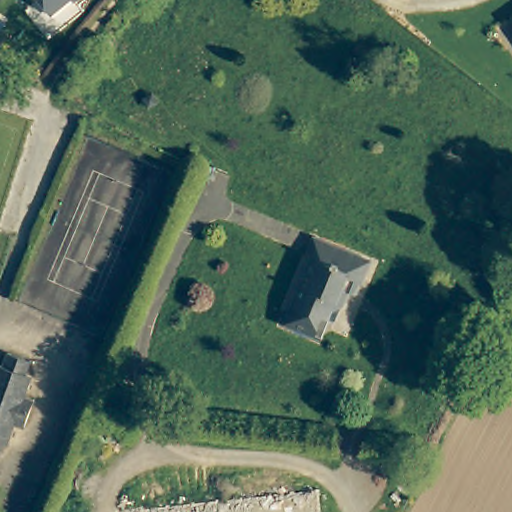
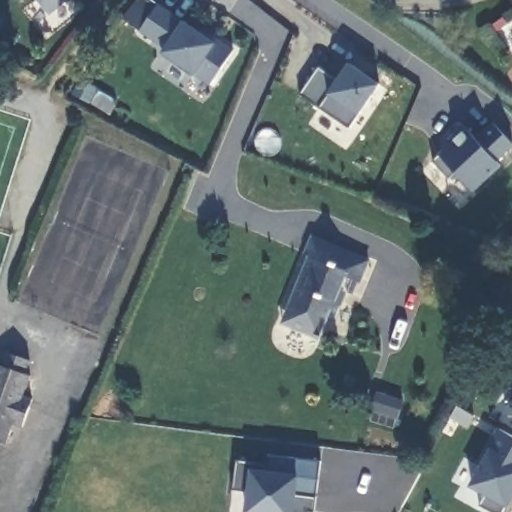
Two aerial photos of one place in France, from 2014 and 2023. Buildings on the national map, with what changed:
unchanged [(66,0),(56,8),(50,0),(66,0)]
new [(183,19),(208,38),(211,34),(236,49),(213,84),(195,74),(163,53),(166,48),(139,31),(158,2),(183,19)]
new [(381,84),(360,112),(350,128),(301,94),(319,67),(338,79),(349,63),(381,84)]
new [(477,139),(493,123),(512,142),(512,144),(495,159),(500,166),(473,189),(455,171),(449,178),(433,160),(451,143),(447,138),(464,124),(477,139)]
unchanged [(286,317),(293,297),(312,249),(307,248),(313,232),(371,256),(364,272),(360,269),(353,287),(347,284),(342,296),(344,297),(337,314),(326,310),(318,329),(286,317)]
unchanged [(0,364),(6,349),(29,358),(23,373),(29,375),(22,395),(26,397),(29,398),(19,426),(16,424),(12,423),(4,444),(0,442),(0,364)]
new [(503,512),(492,512),(480,506),(484,494),(469,485),(481,464),(479,463),(498,428),(512,435),(512,495),(506,505),(503,512)]
new [(270,464),(271,454),(322,462),(315,510),(308,509),(308,512),(247,512),(248,494),(234,491),(238,460),(270,464)]
demolished [(316,486),(320,512),(91,512),(316,486)]

